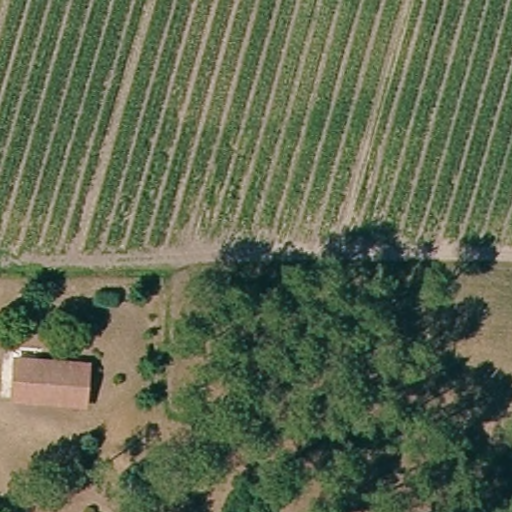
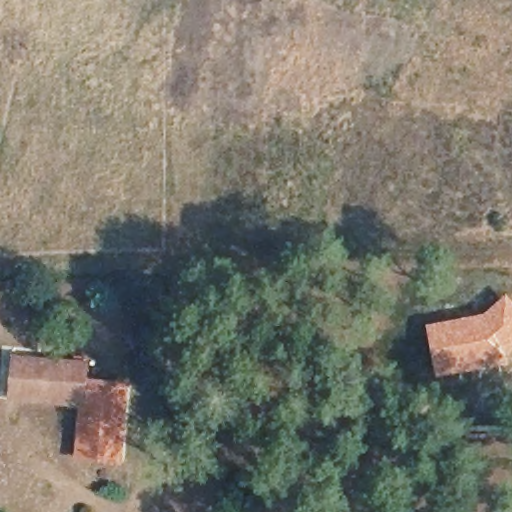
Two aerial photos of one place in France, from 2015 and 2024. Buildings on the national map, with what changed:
new [(481,315),(506,296),(512,303),(512,353),(506,358),(509,364),(487,371),(435,380),(424,325),(481,315)]
unchanged [(81,407),(8,403),(10,371),(10,362),(39,365),(83,367),(81,407)]
new [(130,381),(124,464),(77,460),(81,407),(82,378),(130,381)]

